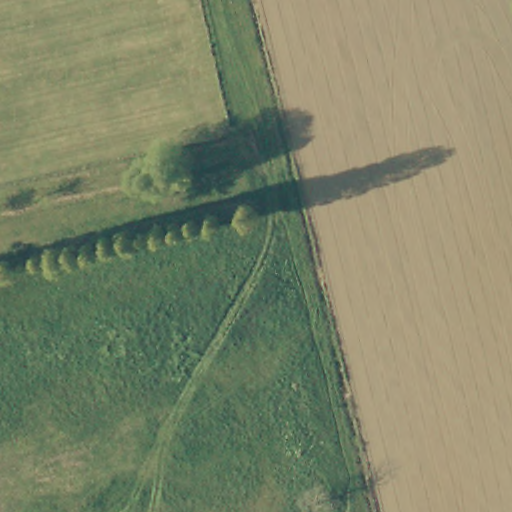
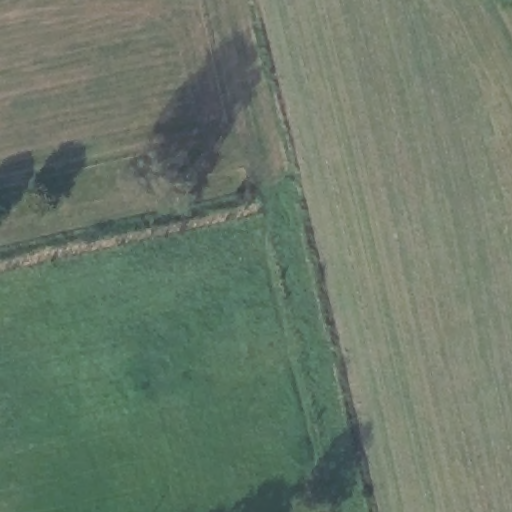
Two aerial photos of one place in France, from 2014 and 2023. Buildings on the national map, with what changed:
[]

